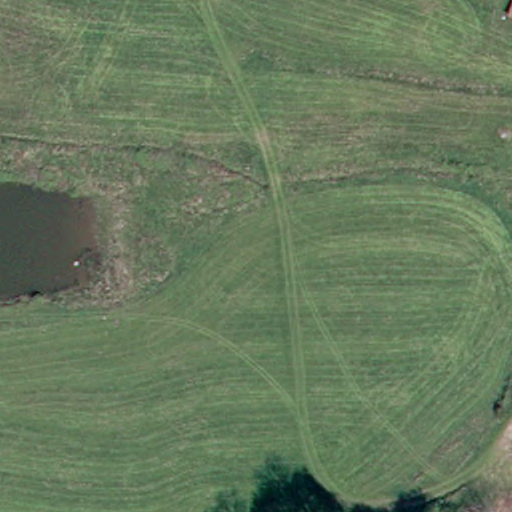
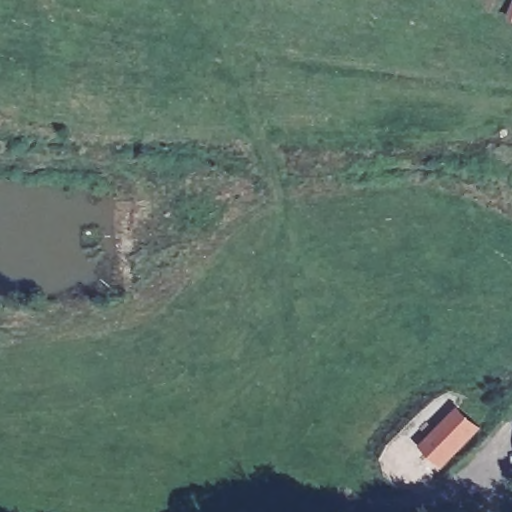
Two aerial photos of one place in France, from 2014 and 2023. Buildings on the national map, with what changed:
unchanged [(463,0),(468,0),(467,1),(463,0)]
new [(461,408),(480,427),(444,465),(424,446),(461,408)]

